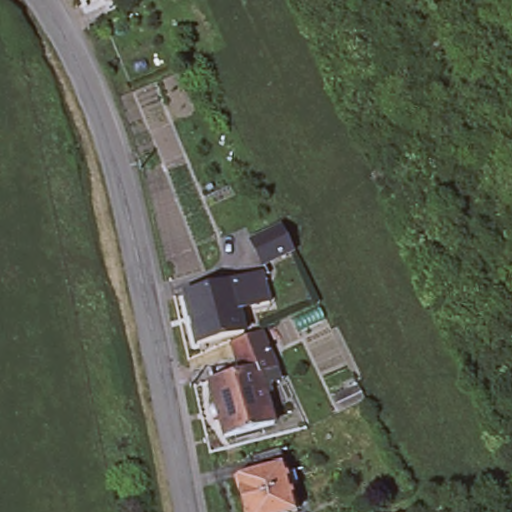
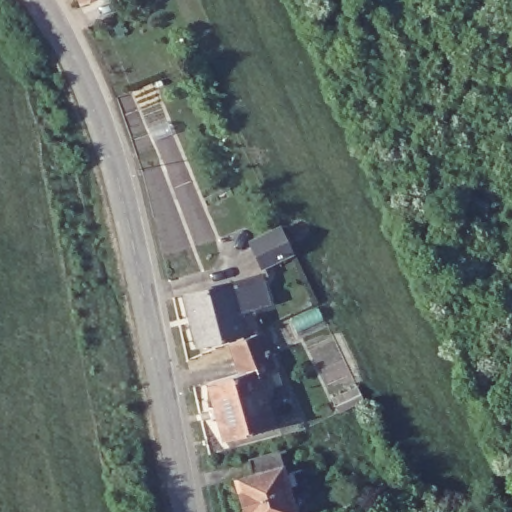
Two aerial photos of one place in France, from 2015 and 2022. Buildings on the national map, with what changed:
unchanged [(79,0),(88,0),(80,3),(79,0)]
unchanged [(289,231),(300,253),(270,268),(260,245),(289,231)]
unchanged [(245,282),(267,277),(275,305),(258,309),(255,304),(241,307),(247,333),(203,345),(191,296),(235,285),(245,282)]
unchanged [(268,336),(281,371),(263,376),(262,369),(245,374),(237,344),(268,336)]
unchanged [(277,426),(227,439),(213,383),(245,374),(262,369),(263,376),(277,426)]
unchanged [(240,485),(257,481),(253,466),(285,457),(288,472),(290,478),(298,476),(302,489),(293,491),(299,512),(247,512),(240,485)]

